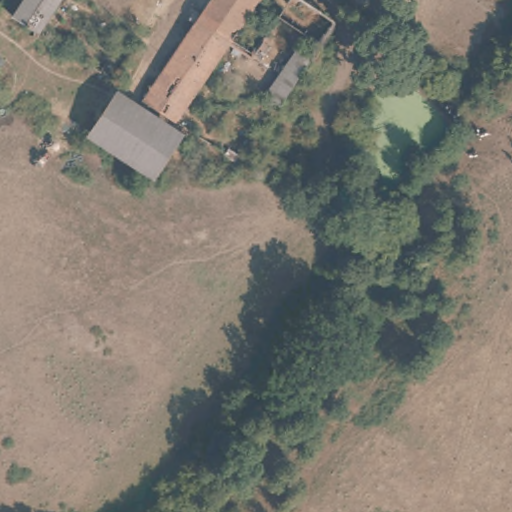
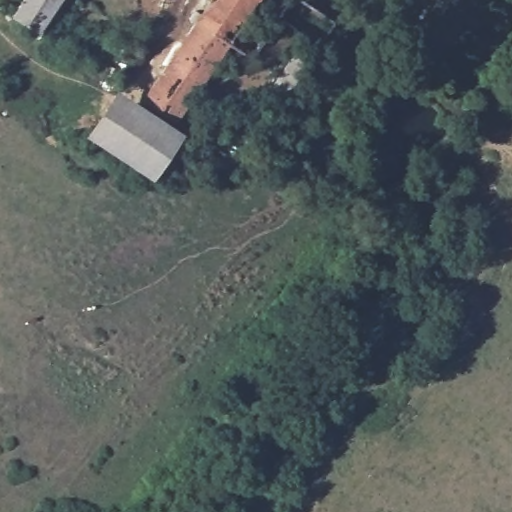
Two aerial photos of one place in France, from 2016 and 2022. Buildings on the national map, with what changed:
unchanged [(31,0),(68,0),(43,38),(17,22),(31,0)]
unchanged [(260,0),(256,6),(231,45),(198,23),(213,0),(260,0)]
unchanged [(280,21),(253,60),(231,45),(256,6),(280,21)]
unchanged [(198,23),(231,45),(175,129),(142,107),(198,23)]
unchanged [(268,108),(275,98),(268,94),(275,83),(299,47),(315,57),(290,94),(277,113),(268,108)]
unchanged [(181,141),(152,186),(90,144),(120,101),(181,141)]

